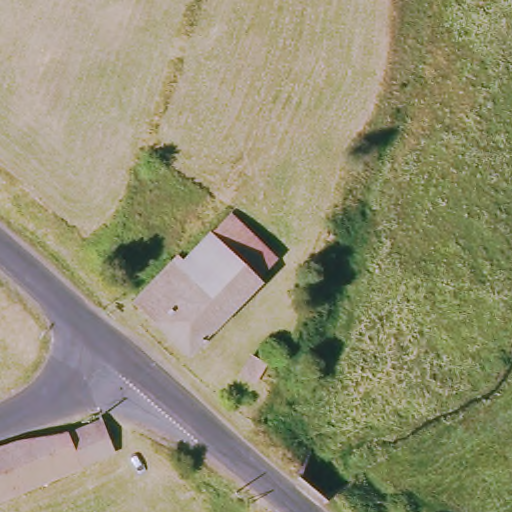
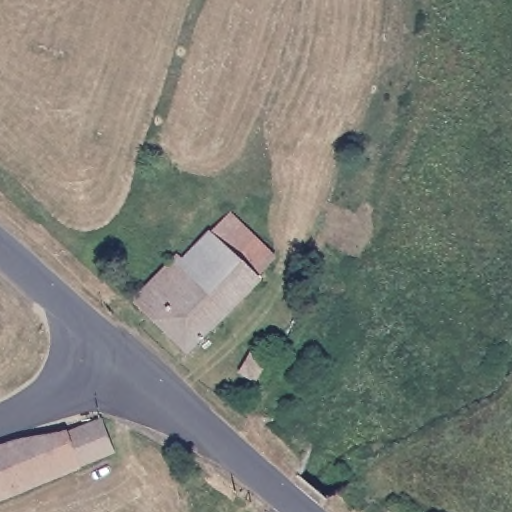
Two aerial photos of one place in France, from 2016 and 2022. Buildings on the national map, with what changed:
unchanged [(208,231),(228,213),(271,259),(253,277),(208,231)]
unchanged [(256,279),(188,350),(134,298),(172,255),(178,259),(208,231),(253,277),(256,279)]
unchanged [(258,383),(246,376),(253,358),(266,364),(258,383)]
unchanged [(110,456),(73,471),(60,434),(96,421),(110,456)]
unchanged [(73,471),(0,504),(0,449),(60,434),(73,471)]

